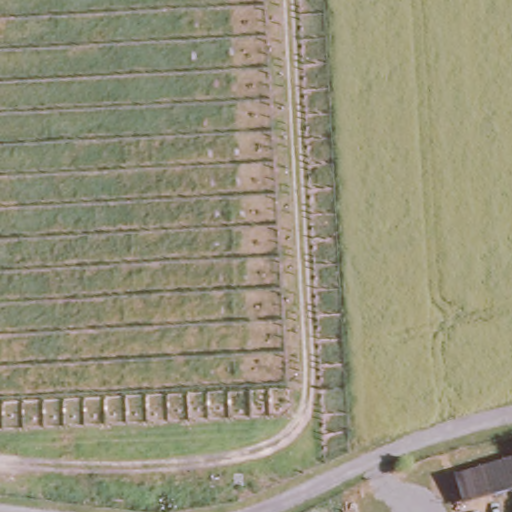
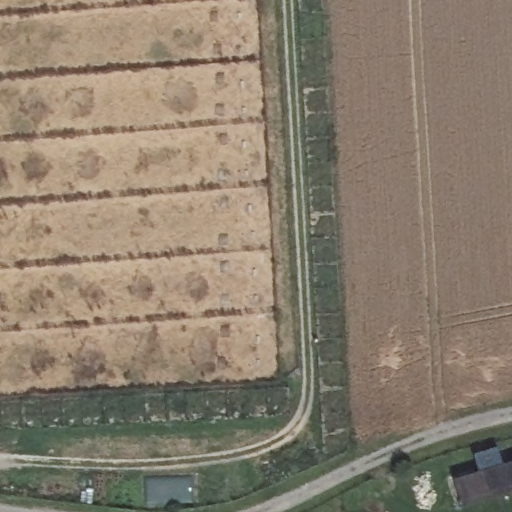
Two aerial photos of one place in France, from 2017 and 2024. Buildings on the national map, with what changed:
unchanged [(457,502),(448,473),(512,456),(512,487),(457,502)]

